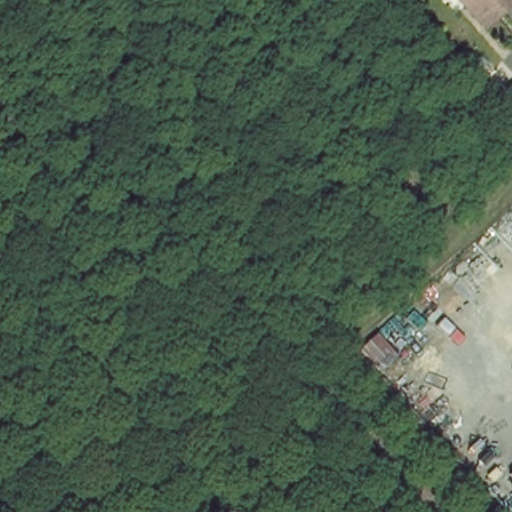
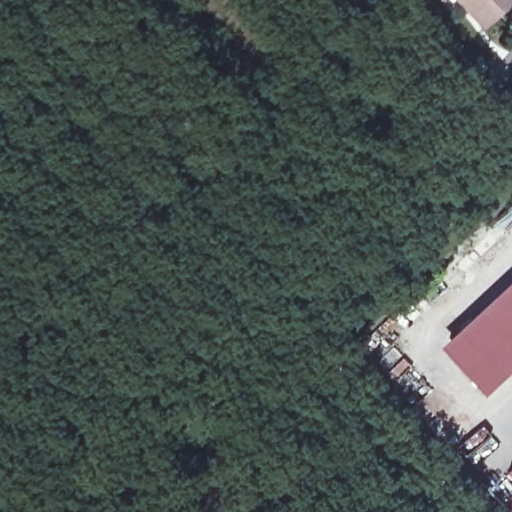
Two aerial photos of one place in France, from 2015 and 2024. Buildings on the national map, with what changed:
unchanged [(461,2),(460,0),(512,0),(486,26),(461,2)]
new [(512,366),(482,394),(439,346),(512,277),(512,366)]
unchanged [(512,467),(512,481),(505,473),(512,467)]

